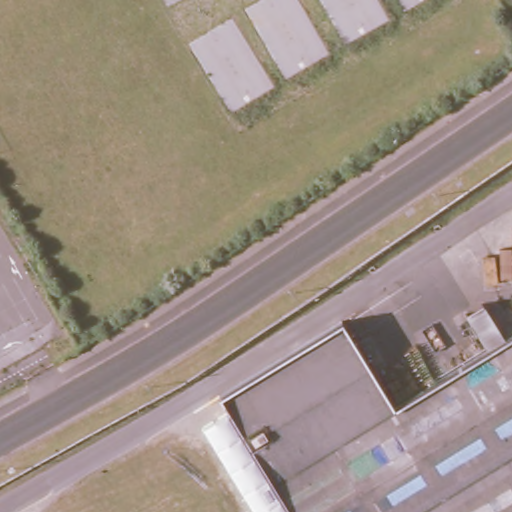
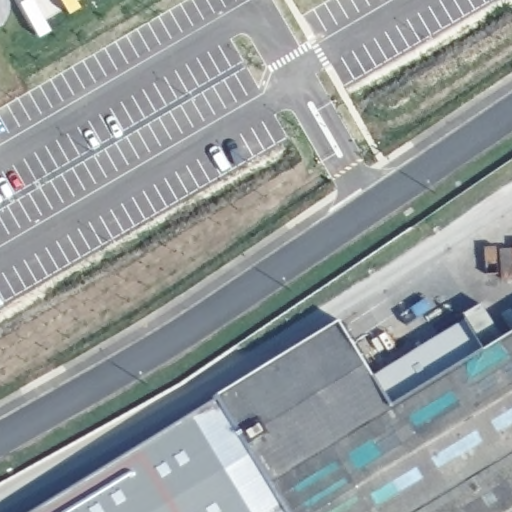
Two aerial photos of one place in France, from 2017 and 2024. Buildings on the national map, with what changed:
unchanged [(336,322),(388,408),(335,440),(378,512),(281,512),(212,399),(336,322)]
unchanged [(388,408),(512,332),(512,512),(378,512),(335,440),(388,408)]
new [(281,512),(31,512),(212,399),(281,512)]

